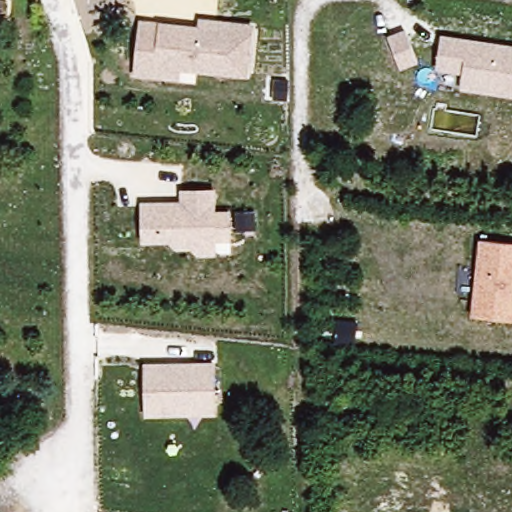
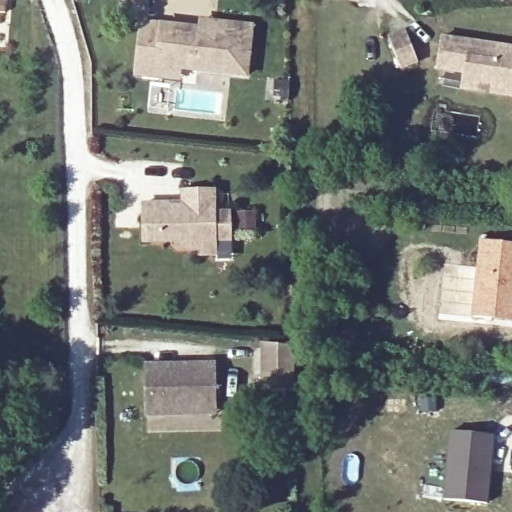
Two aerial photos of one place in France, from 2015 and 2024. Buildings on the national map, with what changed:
unchanged [(13,24),(3,23),(5,9),(14,11),(13,24)]
unchanged [(256,22),(249,78),(180,72),(178,82),(131,76),(137,20),(196,26),(198,16),(256,22)]
unchanged [(419,63),(399,71),(385,36),(405,28),(419,63)]
unchanged [(512,98),(460,91),(462,74),(435,70),(440,34),(512,44),(512,98)]
unchanged [(232,242),(216,242),(217,257),(198,258),(190,251),(179,250),(169,242),(141,243),(140,202),(180,201),(179,189),(215,188),(215,212),(231,211),(232,242)]
unchanged [(512,320),(470,315),(479,241),(512,244),(512,320)]
new [(292,344),(293,391),(261,391),(260,340),(292,344)]
unchanged [(215,363),(216,402),(185,402),(185,415),(146,415),(145,366),(215,363)]
new [(448,430),(494,435),(487,503),(441,499),(448,430)]

